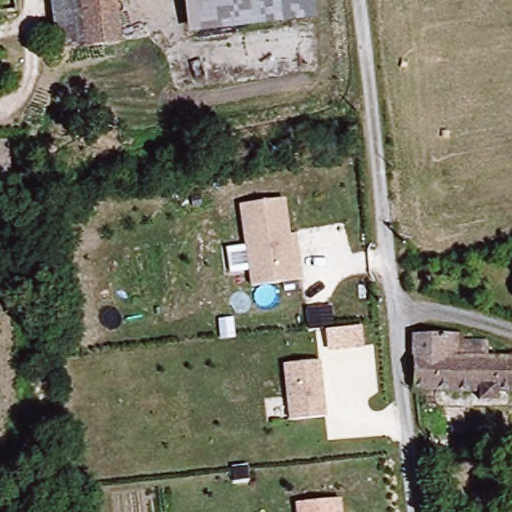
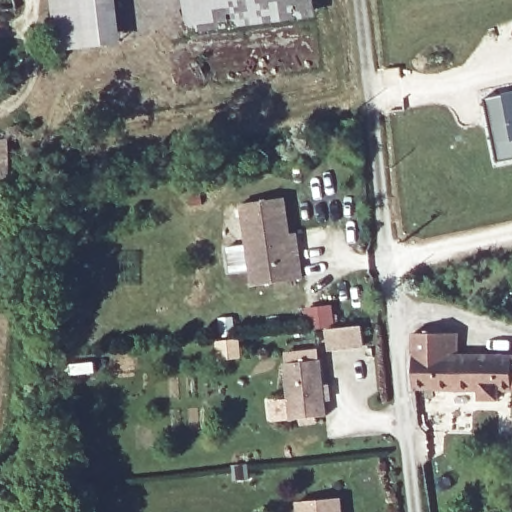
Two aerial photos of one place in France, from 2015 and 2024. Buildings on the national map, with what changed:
unchanged [(21,7),(0,8),(0,0),(21,0),(21,7)]
unchanged [(112,37),(62,40),(57,0),(110,0),(112,37)]
unchanged [(318,19),(191,31),(188,0),(316,0),(318,19)]
new [(486,96),(512,91),(512,158),(498,161),(486,96)]
unchanged [(12,141),(16,217),(0,218),(0,141),(12,141)]
unchanged [(239,204),(285,198),(290,234),(298,234),(304,281),(250,287),(239,204)]
unchanged [(326,328),(310,330),(307,306),(332,304),(335,326),(363,323),(365,346),(329,350),(326,328)]
unchanged [(415,332),(460,332),(460,340),(489,339),(489,360),(457,358),(457,343),(416,345),(415,332)]
unchanged [(420,392),(416,345),(457,343),(457,358),(489,360),(512,361),(512,393),(503,394),(504,413),(485,412),(484,392),(420,392)]
unchanged [(284,363),(321,359),(327,417),(290,421),(284,363)]
unchanged [(342,499),(343,512),(297,512),(296,502),(342,499)]

